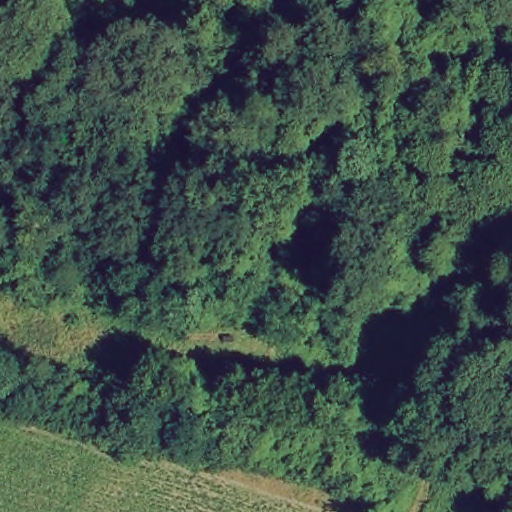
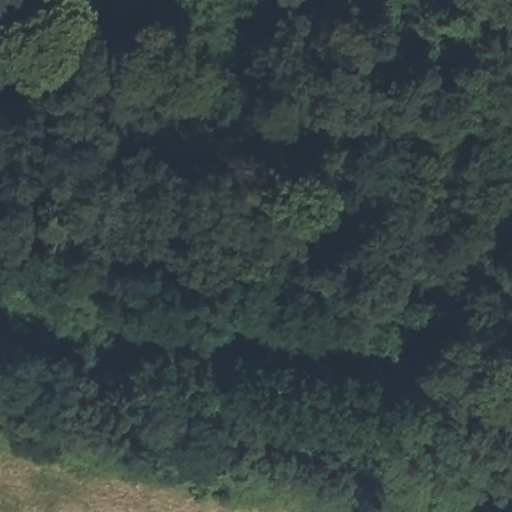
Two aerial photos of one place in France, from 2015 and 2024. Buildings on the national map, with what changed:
unchanged [(508,316),(512,318),(512,359),(492,350),(508,316)]

